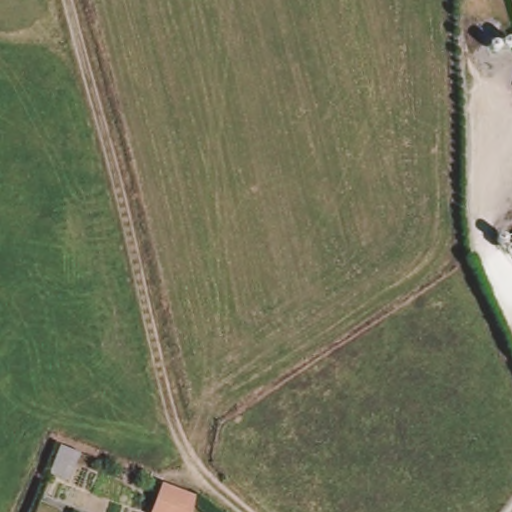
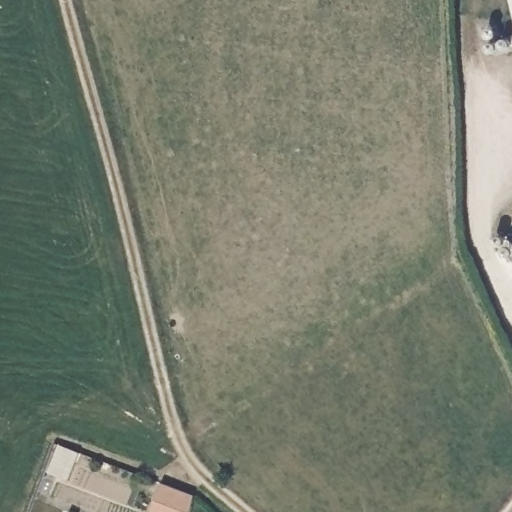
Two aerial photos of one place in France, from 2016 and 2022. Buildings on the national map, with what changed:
unchanged [(512,0),(512,12),(509,0),(512,0)]
unchanged [(74,457),(67,487),(49,483),(56,453),(74,457)]
unchanged [(200,492),(192,512),(152,512),(160,481),(178,486),(200,492)]

